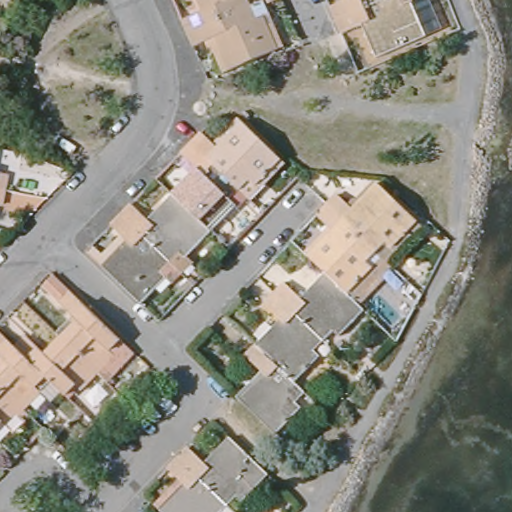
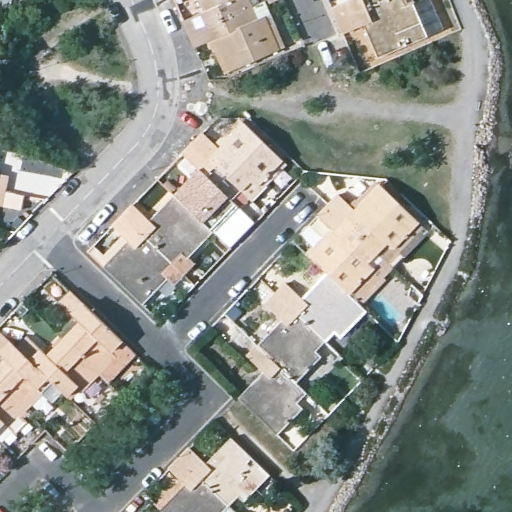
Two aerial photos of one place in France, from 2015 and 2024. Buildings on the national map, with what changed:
unchanged [(187,35),(180,22),(200,14),(194,0),(245,0),(249,7),(250,9),(262,3),(268,17),(281,48),(275,51),(227,71),(220,74),(206,43),(193,49),(187,35)]
unchanged [(423,0),(425,0),(440,34),(424,41),(375,62),(368,65),(354,33),(340,39),(334,24),(328,12),(342,6),(339,0),(406,0),(409,6),(423,0)]
unchanged [(172,266),(162,277),(167,283),(142,309),(137,304),(102,270),(98,266),(123,239),(112,229),(133,208),(148,223),(172,198),(198,172),(182,157),(203,137),(217,151),(242,125),(282,163),(257,189),(261,193),(252,203),(242,213),(238,210),(212,236),(187,261),(191,265),(181,275),(172,266)]
unchanged [(278,433),(238,395),(260,373),(243,356),(255,344),(279,320),(263,304),(274,292),(285,281),(301,297),(326,272),(316,261),(310,256),(306,252),(330,228),(316,216),(328,204),(338,193),(350,203),(370,181),(372,178),(378,184),(419,221),(424,226),(389,263),(393,267),(358,302),(365,309),(340,335),(334,329),(323,339),(313,349),(319,358),(294,382),(304,391),(311,398),(300,410),(278,433)]
unchanged [(8,182),(5,197),(2,211),(0,211),(0,181),(8,182)]
unchanged [(5,357),(0,352),(0,331),(13,342),(25,331),(46,350),(61,334),(56,328),(73,312),(60,300),(48,289),(54,283),(56,283),(61,285),(67,288),(69,290),(134,350),(108,378),(99,370),(92,378),(82,388),(78,385),(75,383),(66,393),(64,392),(53,402),(42,393),(33,403),(22,415),(11,426),(8,423),(5,420),(0,425),(0,362),(5,357)]
unchanged [(177,488),(162,474),(184,452),(198,465),(222,440),(262,479),(238,504),(231,512),(154,512),(177,488)]

